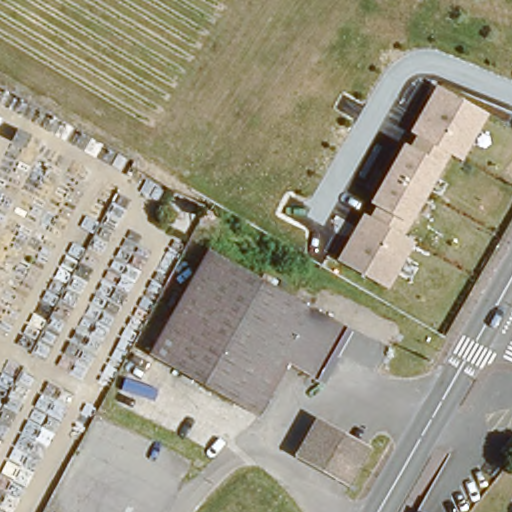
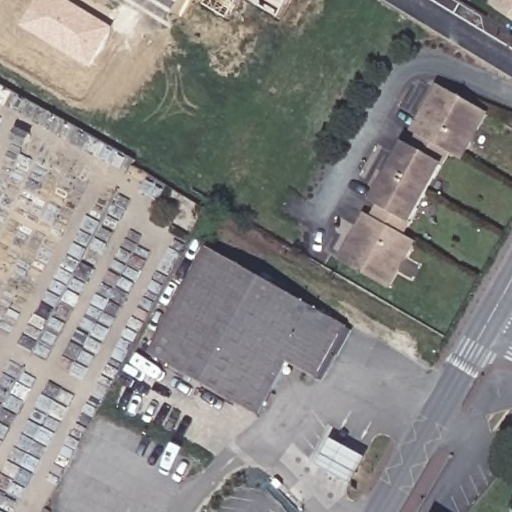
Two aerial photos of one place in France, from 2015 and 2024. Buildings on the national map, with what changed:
new [(113,27),(90,68),(21,27),(37,0),(66,0),(113,27)]
new [(229,19),(205,5),(208,0),(241,0),(229,19)]
new [(253,2),(249,0),(289,0),(278,18),(253,2)]
new [(512,15),(493,2),(495,0),(512,0),(512,15)]
unchanged [(451,154),(445,165),(412,223),(406,235),(418,241),(391,289),(339,259),(366,211),(372,214),(378,205),(371,202),(405,142),(412,145),(418,134),(411,131),(438,83),(491,111),(465,160),(451,154)]
unchanged [(288,362),(261,413),(149,351),(210,244),(348,322),(316,379),(288,362)]
demolished [(486,396),(477,391),(482,381),(492,386),(486,396)]
unchanged [(316,463),(333,430),(366,448),(350,478),(316,463)]

